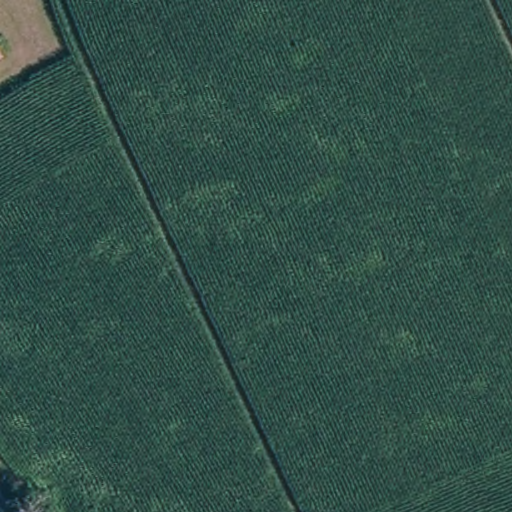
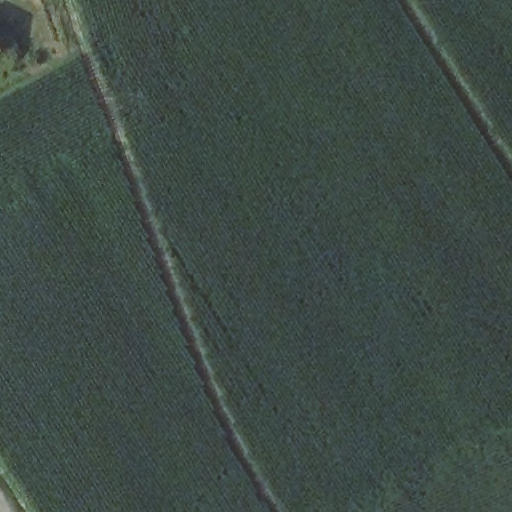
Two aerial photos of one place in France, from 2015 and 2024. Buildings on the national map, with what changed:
unchanged [(5,47),(0,51),(0,41),(5,47)]

